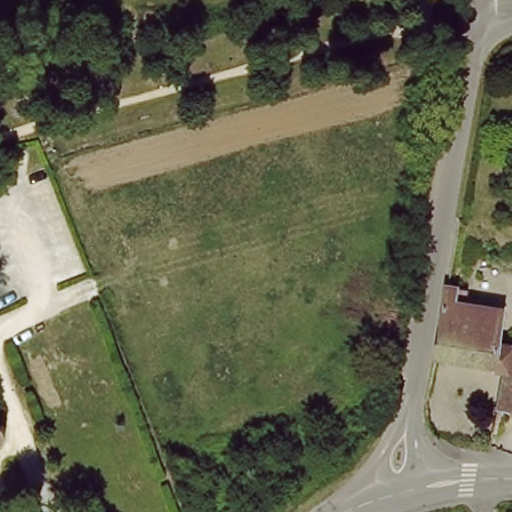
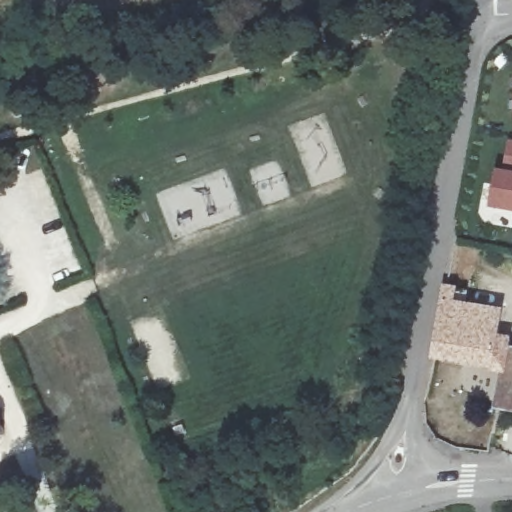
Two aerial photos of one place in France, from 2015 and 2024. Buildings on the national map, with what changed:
new [(490,207),(498,169),(506,171),(510,142),(512,142),(512,211),(490,207)]
unchanged [(503,413),(510,377),(499,376),(499,372),(441,361),(444,329),(448,306),(452,307),(454,292),(467,294),(473,295),(472,308),(507,315),(503,349),(512,351),(512,415),(503,413)]

